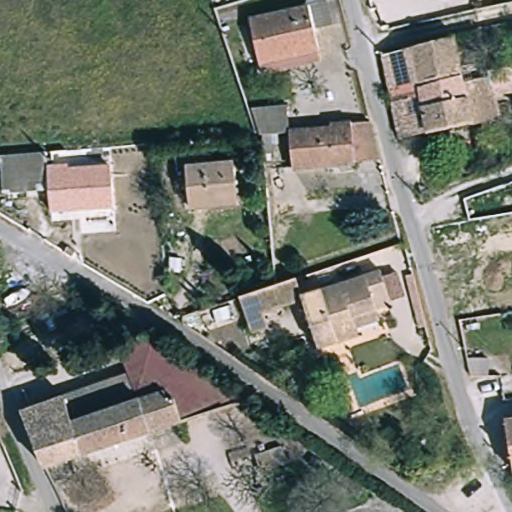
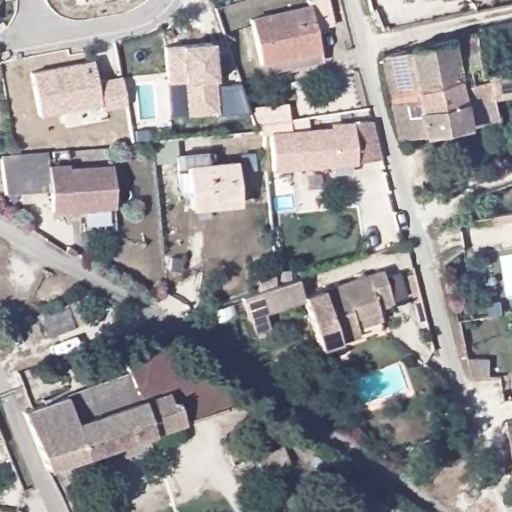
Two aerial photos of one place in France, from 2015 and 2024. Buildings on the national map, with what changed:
unchanged [(298,2),(308,0),(311,0),(317,28),(309,30),(313,50),(252,64),(243,24),(300,10),(298,2)]
unchanged [(487,65),(512,59),(512,115),(401,140),(382,60),(480,36),(487,65)]
new [(180,45),(211,42),(214,80),(215,86),(238,84),(248,113),(217,114),(185,115),(182,83),(166,84),(163,47),(180,45)]
new [(91,62),(96,85),(120,81),(124,112),(101,115),(99,106),(40,117),(31,74),(91,62)]
unchanged [(320,177),(319,172),(283,175),(282,160),(258,162),(254,163),(254,137),(254,134),(253,120),(278,117),(279,126),(280,136),(322,132),(322,128),(371,124),(381,164),(348,166),(349,174),(320,177)]
unchanged [(70,148),(71,163),(112,160),(116,204),(51,207),(50,185),(5,189),(1,153),(70,148)]
unchanged [(218,159),(218,167),(237,166),(240,210),(194,214),(192,186),(181,187),(179,162),(218,159)]
unchanged [(382,275),(391,307),(376,311),(377,315),(350,323),(355,342),(316,354),(301,304),(300,300),(382,275)]
unchanged [(295,283),(300,300),(301,304),(261,317),(266,332),(249,338),(237,301),(275,290),(295,283)]
unchanged [(122,362),(102,370),(97,355),(118,349),(158,337),(239,398),(229,411),(42,471),(20,413),(37,407),(127,377),(122,362)]
unchanged [(512,420),(512,458),(510,420),(512,420)]
unchanged [(297,447),(302,465),(278,472),(272,455),(297,447)]

